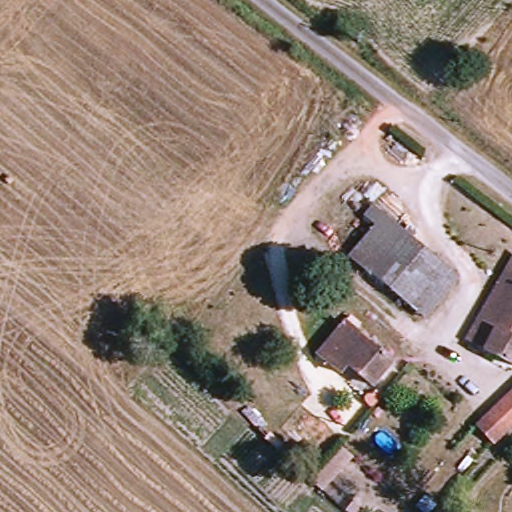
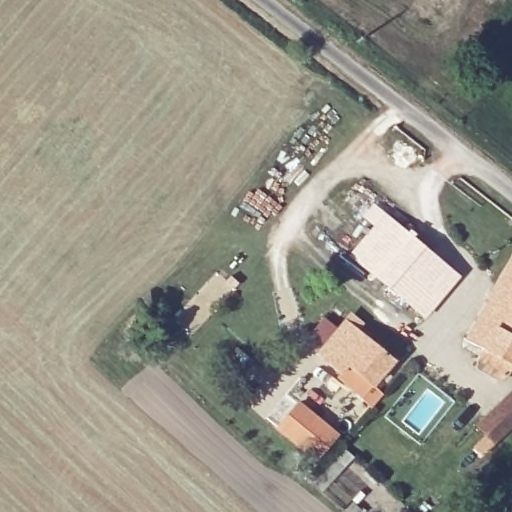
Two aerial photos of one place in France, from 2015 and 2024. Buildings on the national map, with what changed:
unchanged [(406,305),(338,247),(373,208),(439,266),(406,305)]
unchanged [(455,280),(421,319),(406,305),(439,266),(455,280)]
unchanged [(512,279),(512,367),(465,339),(504,274),(512,279)]
unchanged [(347,323),(394,364),(371,391),(345,369),(338,377),(315,358),(347,323)]
unchanged [(474,429),(488,415),(512,392),(512,427),(505,432),(493,446),(474,429)]
new [(276,429),(298,400),(340,435),(316,462),(276,429)]

